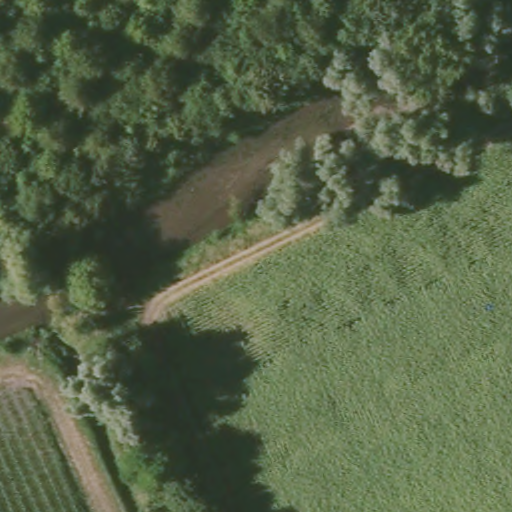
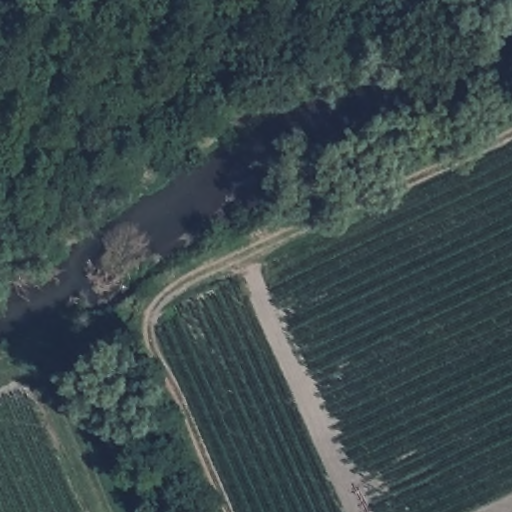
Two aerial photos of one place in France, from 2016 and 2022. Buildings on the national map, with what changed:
[]

